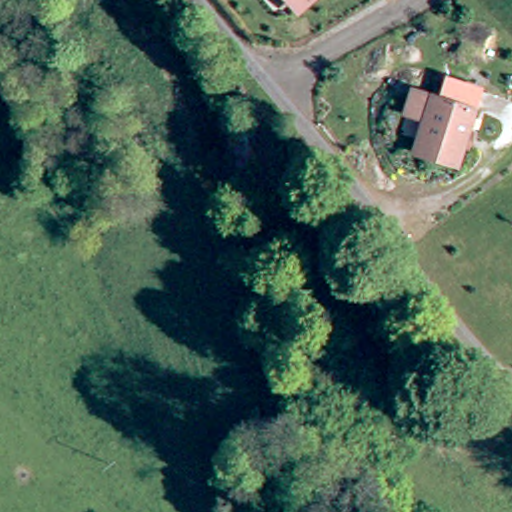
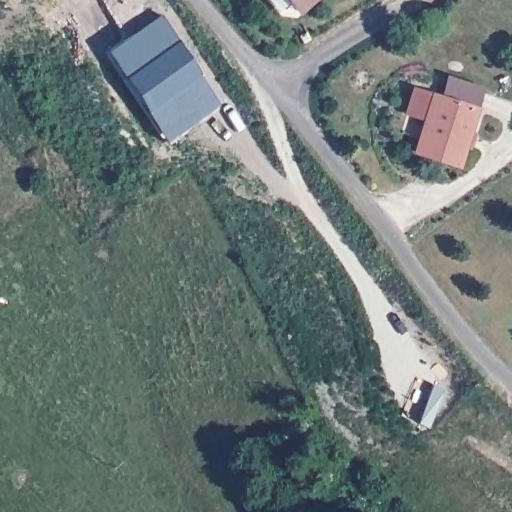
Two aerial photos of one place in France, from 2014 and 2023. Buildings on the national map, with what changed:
unchanged [(285,0),(308,0),(295,11),(285,0)]
new [(154,15),(210,102),(157,137),(100,50),(154,15)]
unchanged [(414,87),(437,94),(444,74),(483,85),(475,117),(468,113),(423,99),(411,95),(414,87)]
unchanged [(424,120),(405,114),(411,95),(468,113),(452,165),(414,153),(424,120)]

